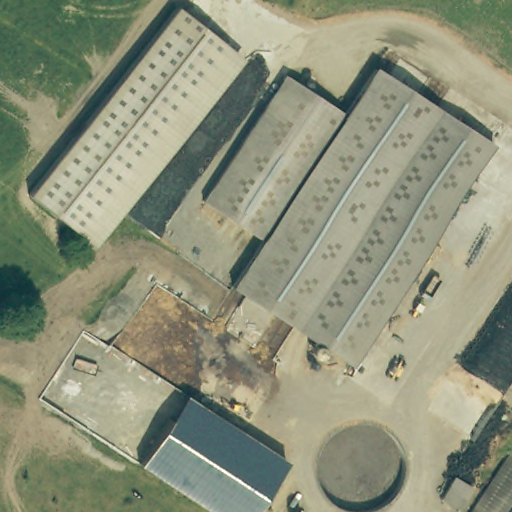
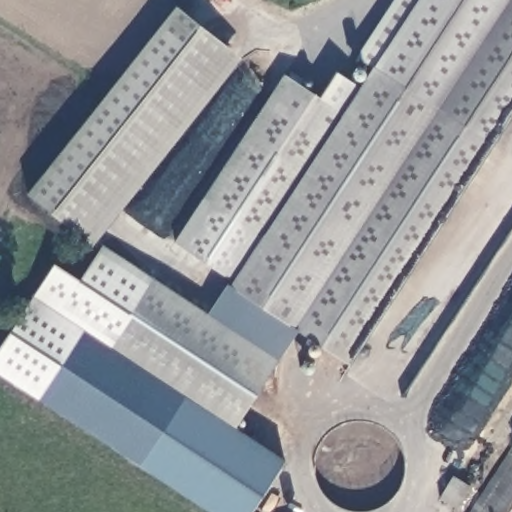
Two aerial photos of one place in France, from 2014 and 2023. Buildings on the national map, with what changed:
new [(390,0),(512,0),(512,104),(490,137),(369,62),(355,54),(390,0)]
unchanged [(241,58),(91,246),(28,195),(175,6),(241,58)]
unchanged [(261,238),(198,200),(281,70),(342,107),(369,62),(490,137),(353,358),(232,283),(261,238)]
new [(172,242),(198,200),(261,238),(232,283),(172,242)]
new [(180,394),(137,465),(40,397),(84,331),(109,347),(154,279),(277,360),(234,427),(180,394)]
unchanged [(180,394),(283,457),(249,512),(215,512),(137,465),(180,394)]
unchanged [(512,506),(487,490),(512,450),(512,506)]
unchanged [(512,512),(472,512),(487,490),(512,506),(512,512)]

